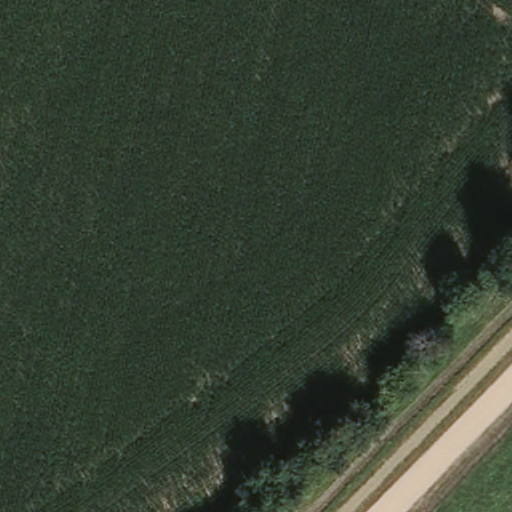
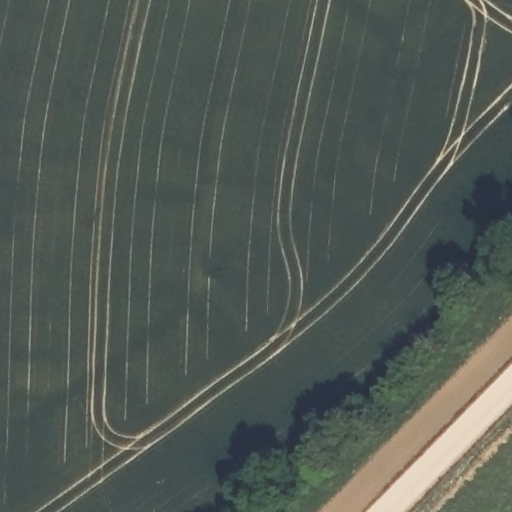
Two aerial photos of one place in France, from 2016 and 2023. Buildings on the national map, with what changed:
[]

